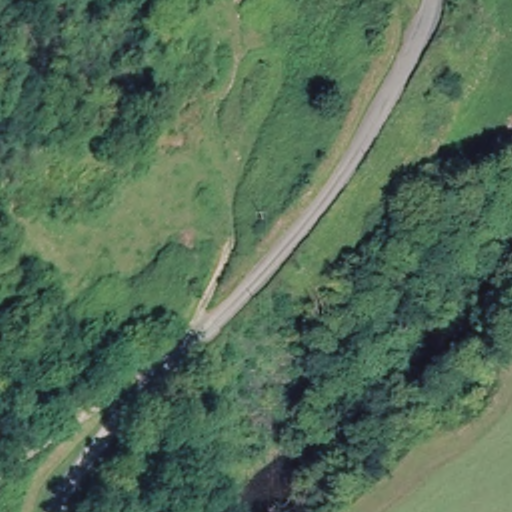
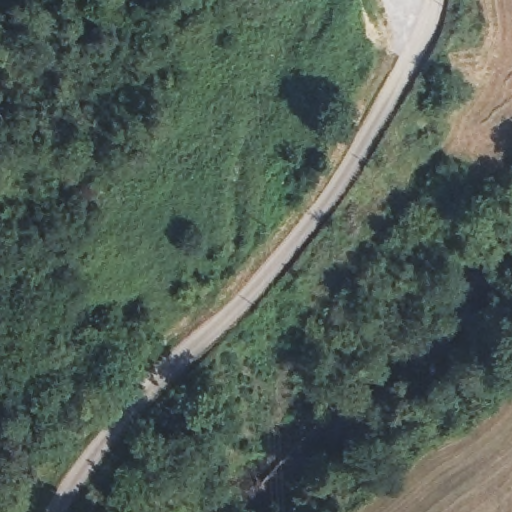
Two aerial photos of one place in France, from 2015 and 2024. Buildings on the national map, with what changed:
[]

